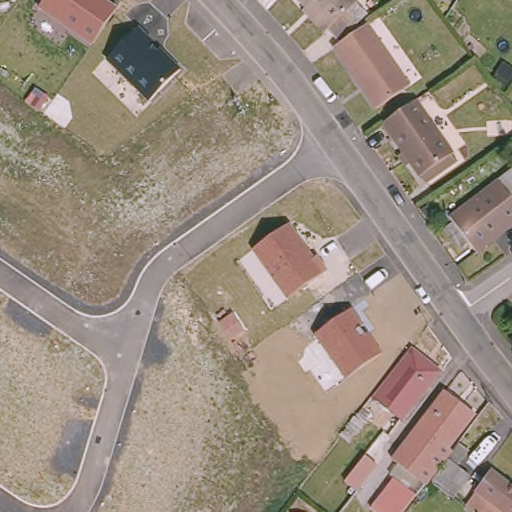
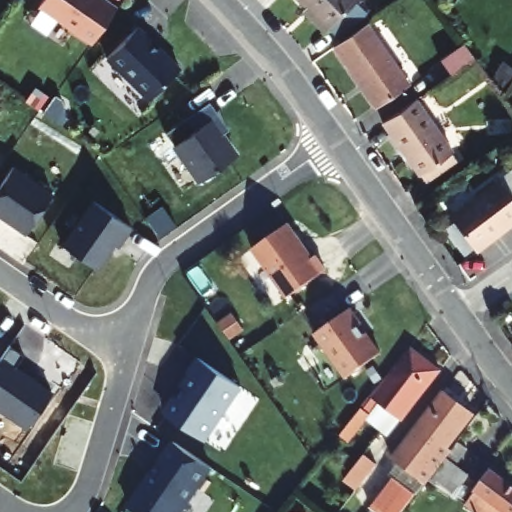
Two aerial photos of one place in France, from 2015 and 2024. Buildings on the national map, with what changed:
unchanged [(32,9),(38,0),(109,0),(117,5),(90,45),(32,9)]
unchanged [(302,7),(306,3),(303,0),(356,0),(327,26),(323,30),(302,7)]
unchanged [(375,104),(331,42),(365,19),(409,80),(375,104)]
unchanged [(104,55),(137,24),(180,67),(144,100),(104,55)]
unchanged [(443,151),(409,174),(374,120),(407,99),(423,122),(443,151)]
new [(223,131),(238,152),(198,182),(172,146),(174,144),(166,132),(210,102),(227,127),(223,131)]
new [(0,217),(0,184),(13,165),(54,192),(25,234),(0,217)]
unchanged [(512,182),(512,214),(511,215),(512,217),(462,254),(437,220),(503,170),(512,182)]
new [(63,244),(96,199),(132,229),(119,247),(115,245),(98,269),(63,244)]
unchanged [(289,221),(323,269),(281,295),(246,249),(289,221)]
unchanged [(378,355),(341,379),(309,330),(349,308),(378,355)]
unchanged [(400,415),(389,406),(404,388),(397,383),(351,439),(340,430),(358,407),(386,372),(388,372),(411,343),(438,365),(400,415)]
new [(0,410),(0,358),(9,345),(22,355),(15,365),(52,392),(26,428),(0,410)]
new [(164,411),(199,357),(244,388),(208,441),(164,411)]
unchanged [(416,467),(413,471),(402,462),(405,458),(393,448),(443,383),(472,405),(421,471),(416,467)]
unchanged [(452,456),(444,450),(457,432),(466,439),(452,456)]
unchanged [(176,438),(215,465),(180,512),(142,512),(127,501),(176,438)]
unchanged [(431,471),(437,461),(459,477),(452,486),(431,471)]
unchanged [(383,512),(368,500),(372,495),(360,485),(376,465),(416,497),(404,512),(383,512)]
unchanged [(491,471),(512,487),(512,512),(476,512),(466,505),(491,471)]

